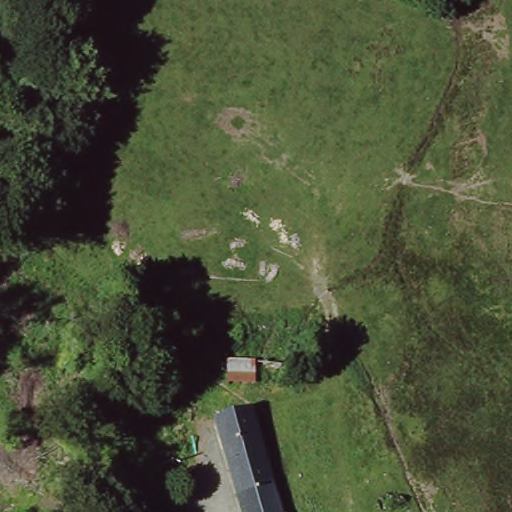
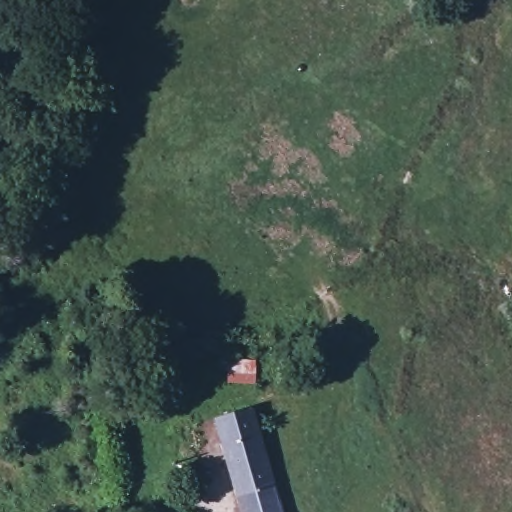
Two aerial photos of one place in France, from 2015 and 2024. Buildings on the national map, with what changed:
unchanged [(270,502),(274,507),(265,512),(231,512),(205,415),(243,404),(252,441),(261,438),(263,451),(256,454),(270,502)]
unchanged [(277,512),(265,512),(274,507),(277,512)]

